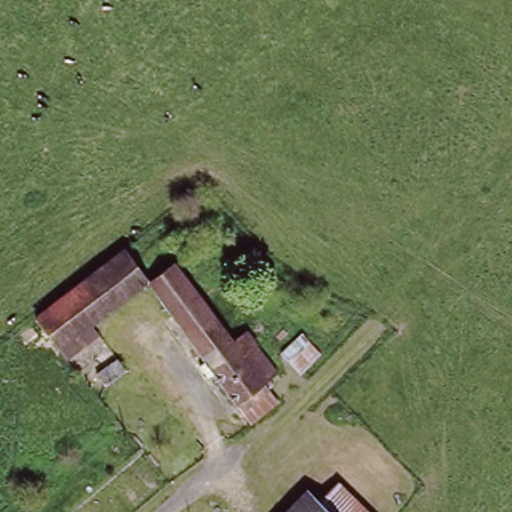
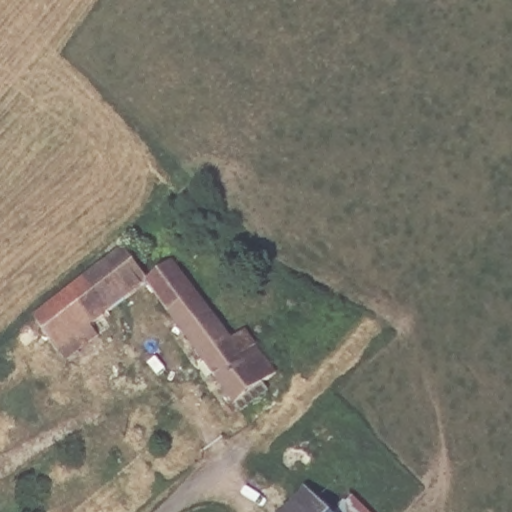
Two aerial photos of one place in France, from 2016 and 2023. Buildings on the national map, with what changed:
unchanged [(90,321),(98,329),(66,355),(34,312),(123,244),(148,275),(146,277),(90,321)]
unchanged [(148,275),(168,259),(241,346),(253,338),(274,365),(263,375),(268,381),(241,402),(146,277),(148,275)]
unchanged [(371,512),(327,512),(316,501),(339,480),(371,512)]
unchanged [(316,501),(327,512),(294,512),(310,495),(316,501)]

